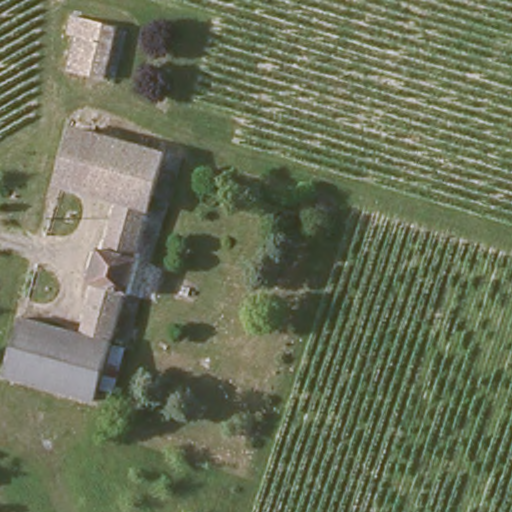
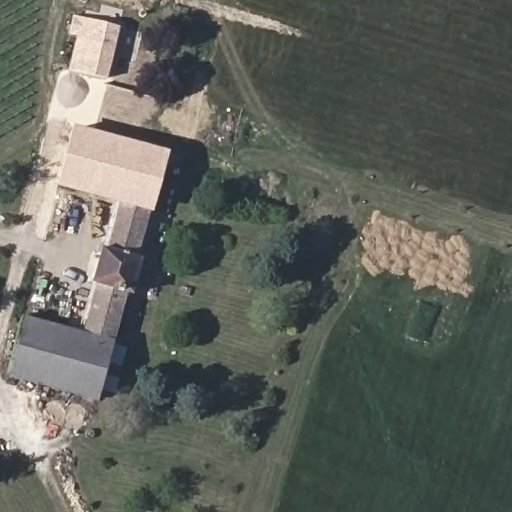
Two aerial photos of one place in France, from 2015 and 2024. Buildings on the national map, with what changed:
unchanged [(80,67),(70,64),(78,28),(71,26),(75,11),(122,24),(106,85),(78,79),(80,67)]
unchanged [(28,317),(89,335),(104,284),(97,281),(105,250),(112,253),(127,200),(66,183),(81,128),(173,155),(143,262),(148,265),(139,295),(132,293),(104,400),(55,387),(12,375),(28,317)]

